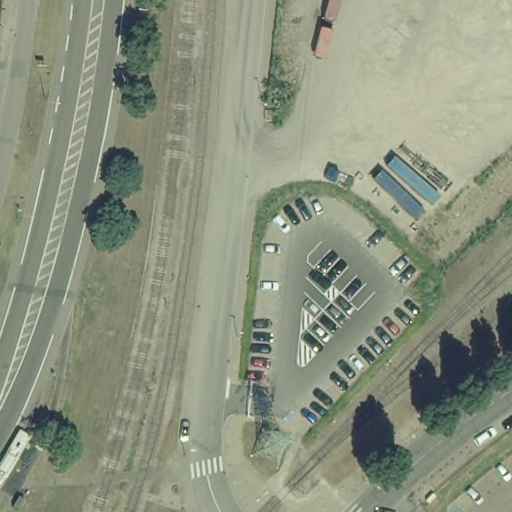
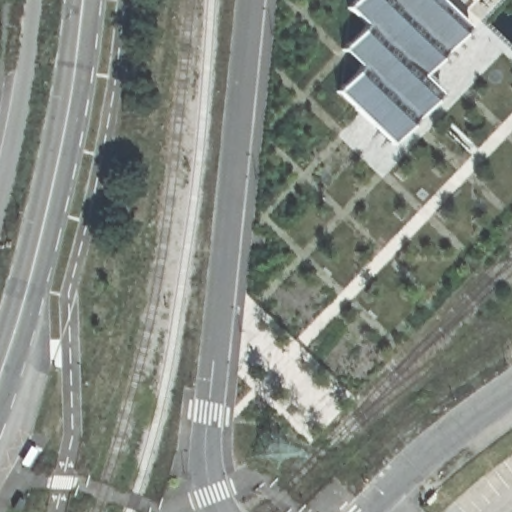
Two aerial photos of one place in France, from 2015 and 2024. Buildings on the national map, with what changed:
new [(331,93),(358,62),(339,42),(358,24),(341,7),(347,0),(439,0),(463,25),(419,75),(440,93),(392,150),(331,93)]

